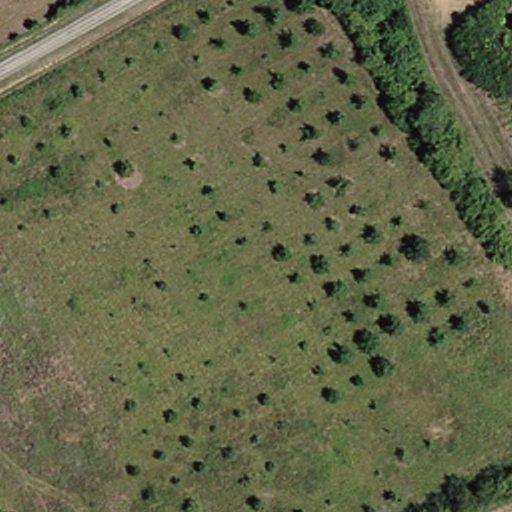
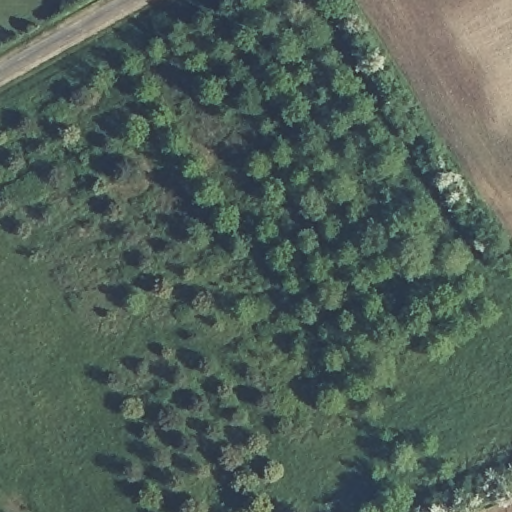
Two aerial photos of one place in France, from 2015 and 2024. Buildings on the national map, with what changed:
[]

